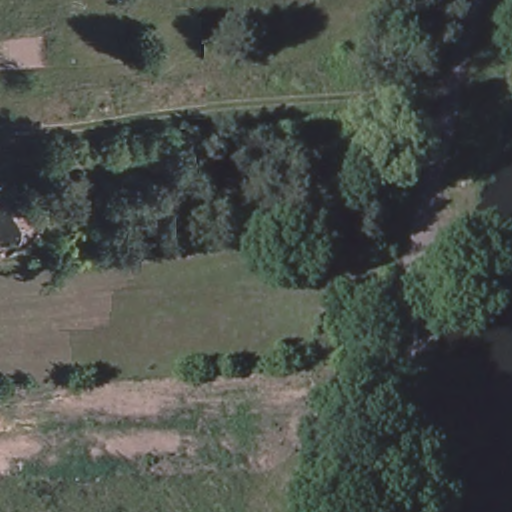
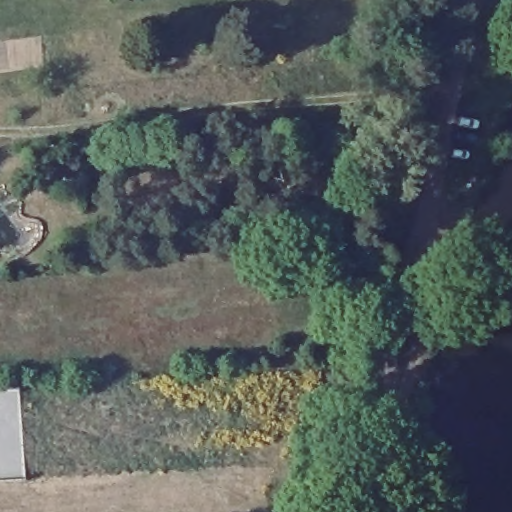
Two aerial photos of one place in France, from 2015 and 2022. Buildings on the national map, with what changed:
new [(28,477),(0,479),(0,387),(22,385),(28,477)]

